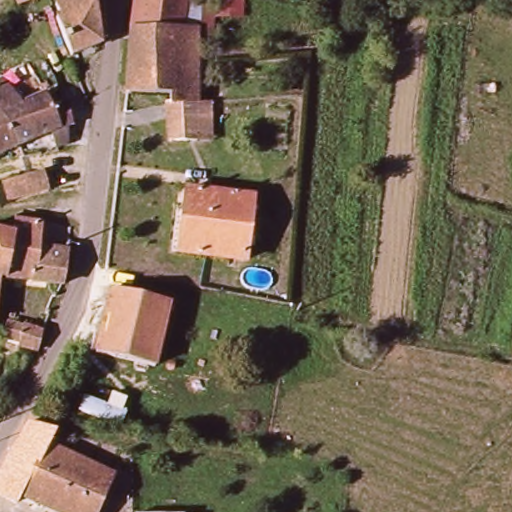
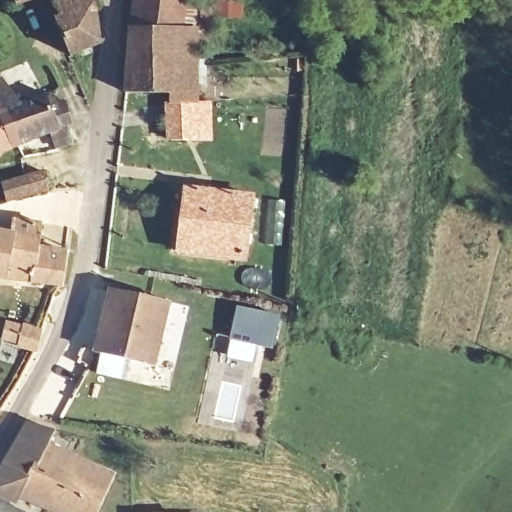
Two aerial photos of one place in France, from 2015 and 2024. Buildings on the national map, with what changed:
unchanged [(95,51),(74,54),(66,19),(60,20),(56,0),(92,0),(96,31),(95,51)]
unchanged [(166,141),(169,109),(172,109),(173,96),(126,90),(133,0),(200,0),(199,4),(197,54),(197,66),(194,111),(214,113),(210,146),(191,144),(166,141)]
unchanged [(215,6),(215,0),(243,0),(243,19),(214,18),(210,55),(197,54),(199,4),(215,6)]
unchanged [(68,136),(65,151),(52,157),(47,145),(14,159),(5,123),(0,123),(0,91),(7,90),(15,109),(45,100),(49,99),(51,106),(59,104),(62,115),(69,113),(75,134),(68,136)]
unchanged [(14,159),(0,165),(0,123),(5,123),(14,159)]
unchanged [(35,172),(40,189),(20,194),(0,202),(0,184),(14,178),(35,172)]
unchanged [(247,261),(182,254),(188,192),(252,199),(247,261)]
unchanged [(14,233),(16,221),(43,224),(39,248),(67,253),(65,266),(59,291),(4,279),(14,233)]
unchanged [(0,292),(0,279),(4,279),(0,292)]
unchanged [(168,303),(154,365),(95,353),(110,290),(168,303)]
new [(282,316),(274,349),(229,340),(238,306),(282,316)]
unchanged [(10,343),(11,340),(0,337),(0,322),(15,327),(15,325),(40,332),(31,350),(10,343)]
unchanged [(52,450),(22,497),(18,504),(0,494),(0,475),(9,457),(28,425),(44,431),(60,436),(52,450)]
unchanged [(76,462),(112,480),(95,512),(52,512),(22,497),(52,450),(76,462)]

